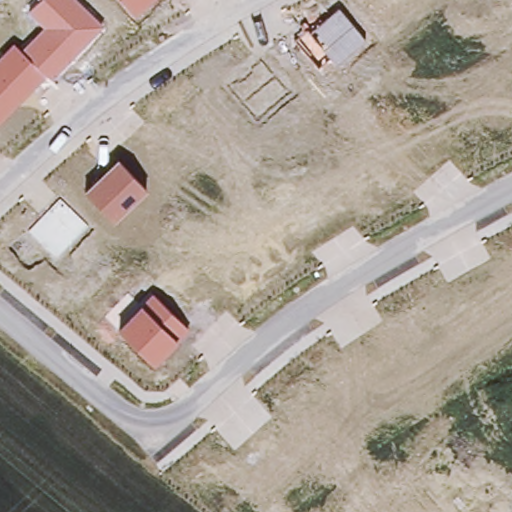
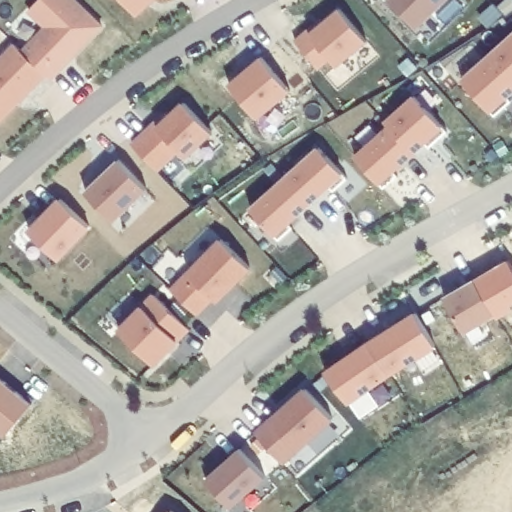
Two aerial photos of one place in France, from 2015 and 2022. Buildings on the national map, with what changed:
unchanged [(77,0),(104,26),(52,81),(46,75),(0,124),(0,57),(14,41),(21,49),(43,26),(30,11),(40,0),(77,0)]
unchanged [(154,0),(137,15),(124,0),(154,0)]
new [(446,0),(416,28),(390,0),(446,0)]
unchanged [(295,40),(308,29),(310,32),(338,9),(366,43),(336,66),(330,59),(317,69),(295,40)]
new [(508,99),(512,103),(512,105),(496,119),(463,83),(512,38),(512,95),(508,99)]
unchanged [(230,85),(261,60),(288,92),(257,116),(230,85)]
new [(446,133),(429,148),(425,145),(394,173),(399,178),(385,190),(356,160),(390,129),(386,125),(415,99),(446,133)]
new [(155,125),(158,129),(185,105),(212,135),(185,159),(180,151),(157,174),(132,148),(155,125)]
new [(349,181),(336,192),(331,187),(291,224),(295,229),(280,242),(252,212),(320,149),(349,181)]
unchanged [(147,190),(115,223),(84,191),(117,159),(147,190)]
unchanged [(56,257),(30,231),(60,200),(87,227),(56,257)]
new [(170,289),(187,271),(220,238),(253,267),(217,302),(214,299),(197,315),(170,289)]
new [(444,296),(474,279),(495,316),(463,333),(444,296)]
unchanged [(189,329),(154,366),(116,329),(152,294),(189,329)]
new [(323,371),(366,340),(415,311),(436,348),(390,375),(347,405),(323,371)]
new [(254,432),(268,417),(305,388),(333,421),(297,451),(281,465),(254,432)]
new [(206,478),(240,448),(266,476),(229,508),(206,478)]

